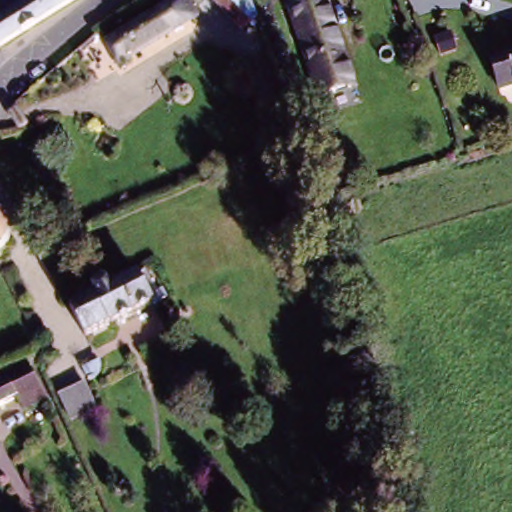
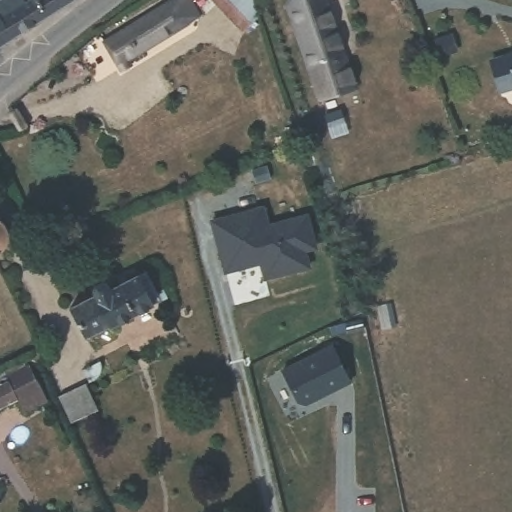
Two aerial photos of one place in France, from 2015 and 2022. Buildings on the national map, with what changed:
unchanged [(0,50),(0,0),(81,0),(1,52),(0,50)]
unchanged [(152,12),(169,0),(175,0),(189,19),(170,33),(116,73),(97,49),(152,12)]
unchanged [(233,25),(221,0),(256,0),(262,13),(233,25)]
unchanged [(315,0),(322,0),(351,60),(319,74),(289,12),(315,0)]
unchanged [(486,59),(512,51),(512,86),(496,91),(486,59)]
new [(264,205),(271,225),(307,214),(319,249),(307,252),(311,268),(265,282),(260,263),(225,273),(210,220),(264,205)]
unchanged [(11,234),(2,242),(5,248),(0,251),(0,220),(11,234)]
unchanged [(0,271),(0,266),(2,270),(0,271)]
unchanged [(69,318),(99,302),(94,295),(104,289),(108,295),(144,277),(157,298),(164,295),(169,305),(88,348),(69,318)]
new [(333,343),(351,382),(307,405),(297,402),(281,369),(333,343)]
unchanged [(15,384),(33,375),(52,406),(34,416),(25,400),(0,414),(0,378),(9,373),(15,384)]
unchanged [(69,403),(95,391),(107,415),(82,427),(69,403)]

